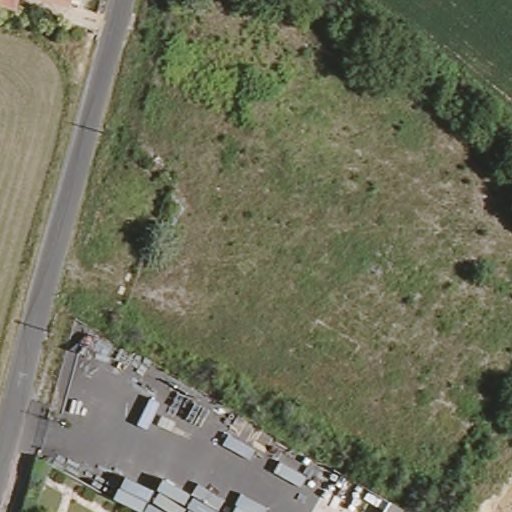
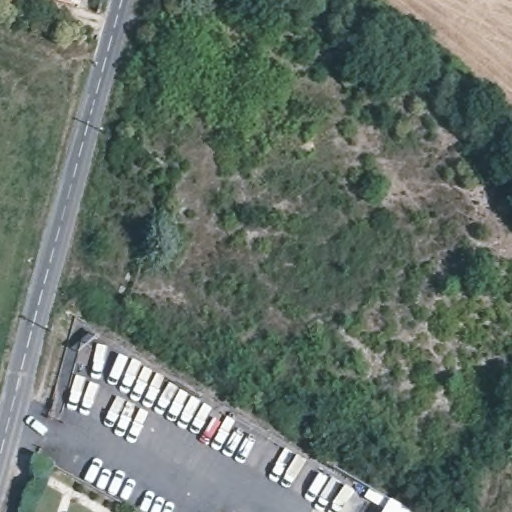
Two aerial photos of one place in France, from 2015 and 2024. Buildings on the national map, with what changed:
unchanged [(381,512),(386,503),(402,512),(381,512)]

